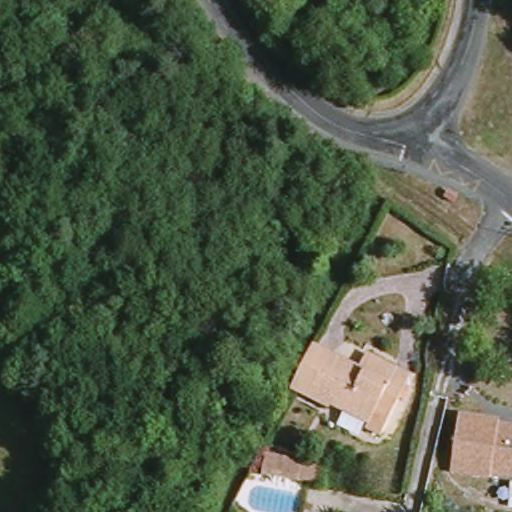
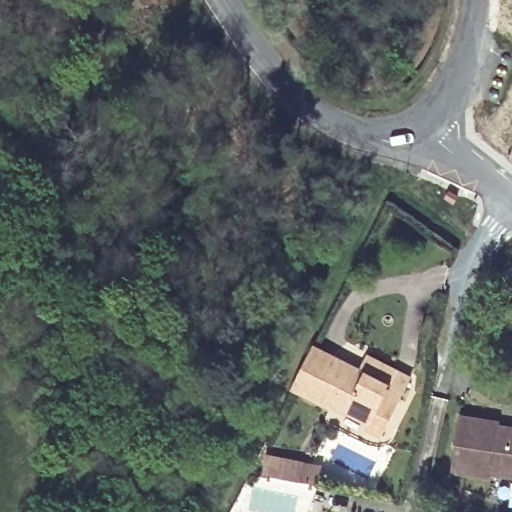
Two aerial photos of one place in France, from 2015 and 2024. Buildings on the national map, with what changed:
unchanged [(294,385),(315,344),(340,356),(319,398),(294,385)]
unchanged [(369,370),(377,355),(420,377),(392,434),(377,427),(379,422),(357,412),(359,408),(344,400),(340,408),(319,398),(340,356),(369,370)]
unchanged [(453,472),(461,413),(504,419),(504,423),(512,425),(512,477),(495,475),(494,479),(453,472)]
unchanged [(322,462),(318,485),(261,476),(265,453),(322,462)]

